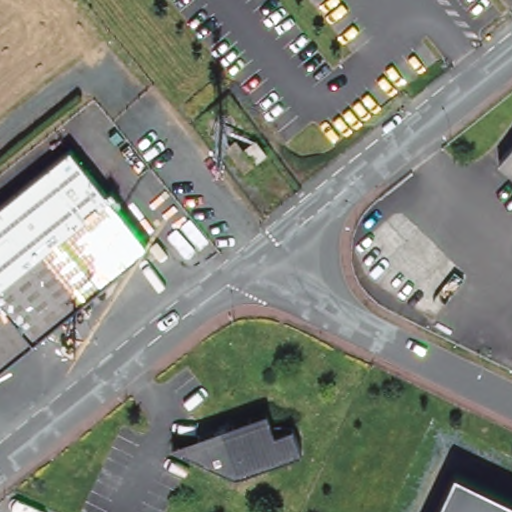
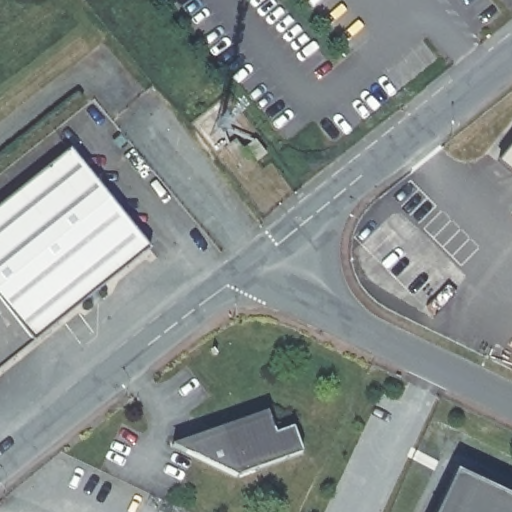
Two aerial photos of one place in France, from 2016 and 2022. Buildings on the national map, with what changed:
unchanged [(246,132),(265,156),(244,173),(225,149),(246,132)]
unchanged [(512,145),(512,173),(498,161),(512,145)]
unchanged [(93,307),(87,299),(0,369),(0,204),(70,148),(150,248),(96,292),(102,300),(93,307)]
unchanged [(279,424),(285,425),(293,427),(302,453),(236,476),(186,452),(172,445),(268,411),(269,416),(272,425),(279,424)]
unchanged [(512,501),(512,512),(436,512),(454,472),(512,501)]

